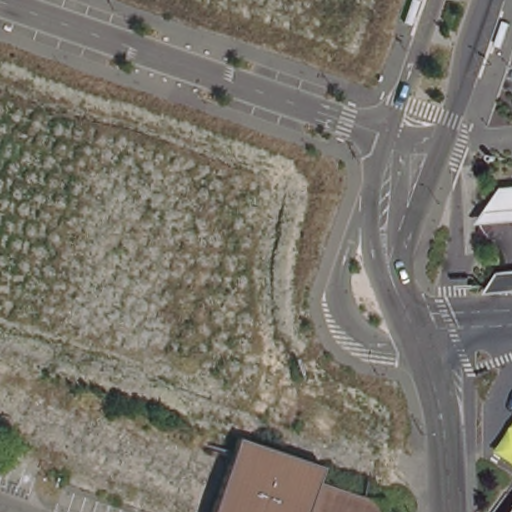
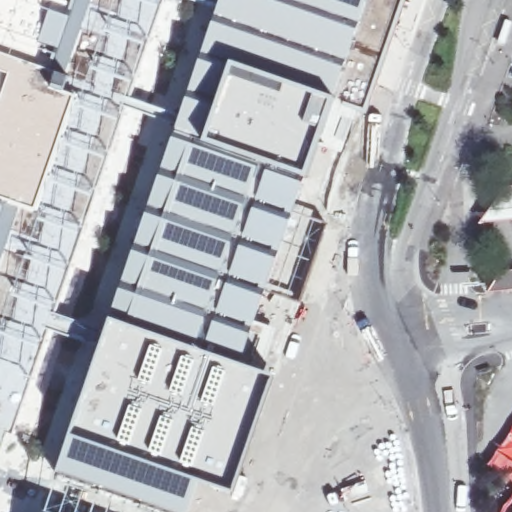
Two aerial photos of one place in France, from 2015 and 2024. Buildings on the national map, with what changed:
new [(0,48),(14,0),(196,0),(37,474),(0,462),(0,48)]
new [(249,0),(376,0),(200,512),(118,512),(84,502),(249,0)]
unchanged [(502,180),(512,179),(512,214),(477,217),(502,180)]
unchanged [(512,272),(512,294),(485,297),(498,273),(512,272)]
new [(512,430),(512,464),(496,453),(512,430)]
demolished [(323,466),(318,478),(380,500),(376,512),(215,512),(239,438),(323,466)]

